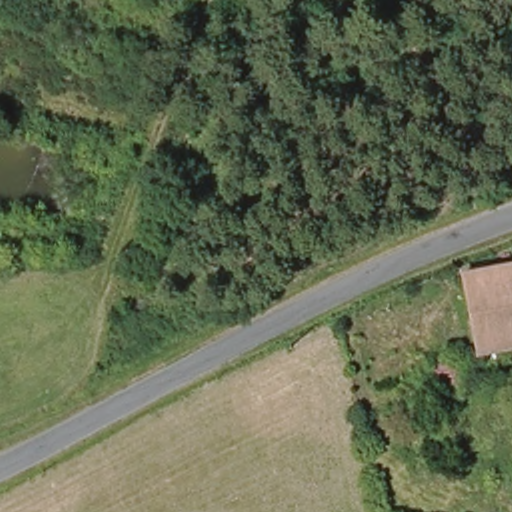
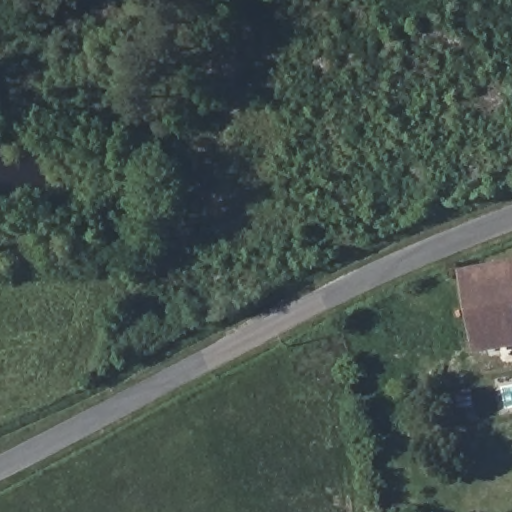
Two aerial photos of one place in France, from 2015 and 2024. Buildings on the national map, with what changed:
unchanged [(464,274),(512,269),(512,347),(472,351),(464,274)]

